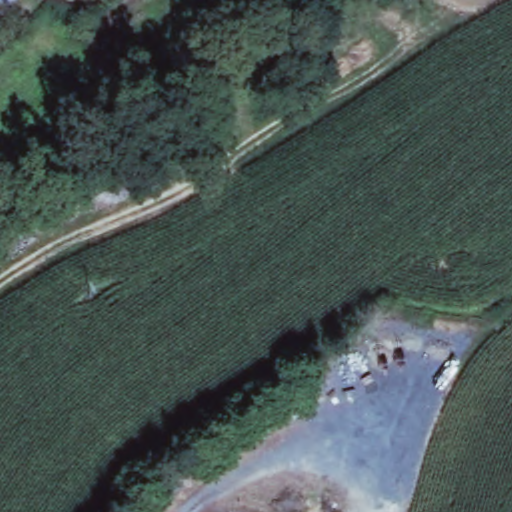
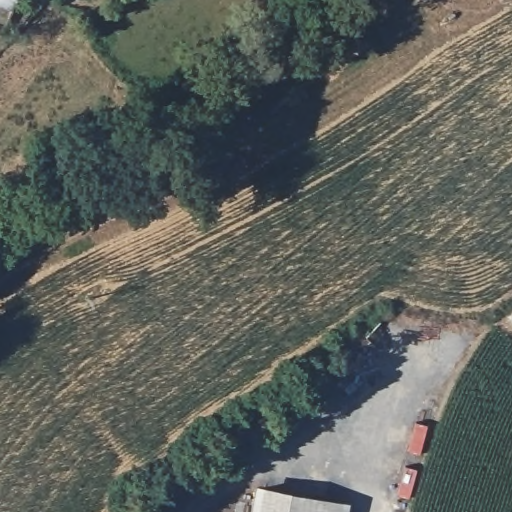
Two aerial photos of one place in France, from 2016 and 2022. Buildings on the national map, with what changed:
new [(0,1),(6,5),(0,16),(0,1)]
new [(257,492),(348,510),(348,512),(253,512),(257,492)]

